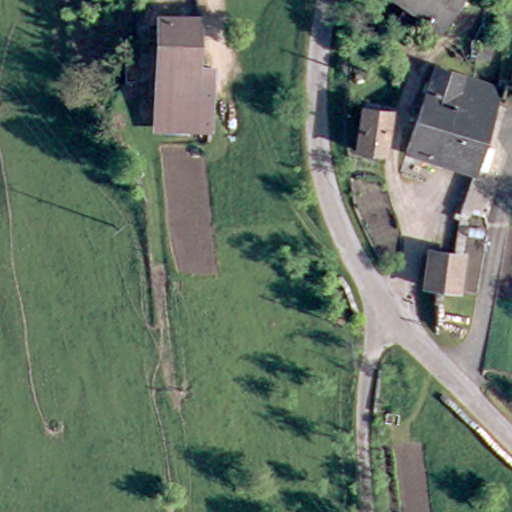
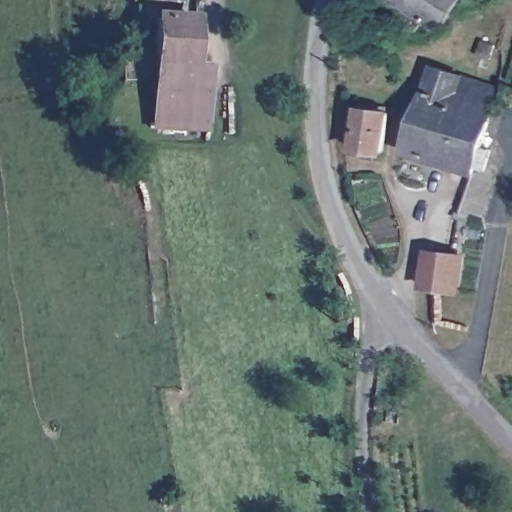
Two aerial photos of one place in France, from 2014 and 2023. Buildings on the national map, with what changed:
unchanged [(399,14),(404,4),(399,0),(458,0),(440,27),(426,19),(420,29),(399,14)]
unchanged [(153,28),(197,28),(196,73),(210,74),(208,128),(152,127),(153,28)]
unchanged [(482,38),(500,44),(495,61),(477,55),(482,38)]
unchanged [(470,174),(403,149),(432,64),(497,86),(474,158),(470,174)]
unchanged [(377,145),(376,159),(360,157),(361,144),(353,143),(359,102),(386,105),(382,146),(377,145)]
unchanged [(474,158),(496,165),(480,215),(456,208),(470,174),(474,158)]
unchanged [(430,250),(467,254),(462,287),(426,283),(430,250)]

